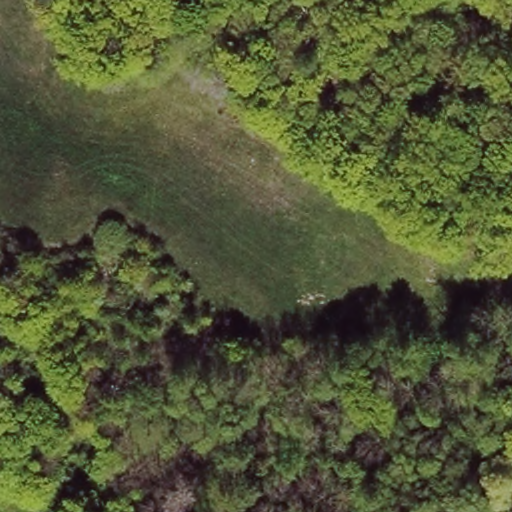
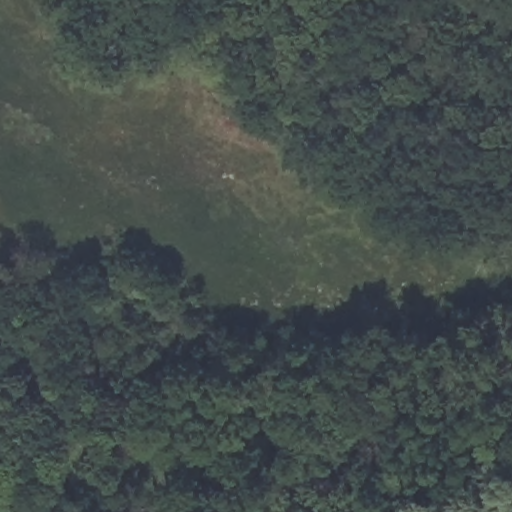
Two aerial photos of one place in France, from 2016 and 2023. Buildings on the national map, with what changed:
[]

